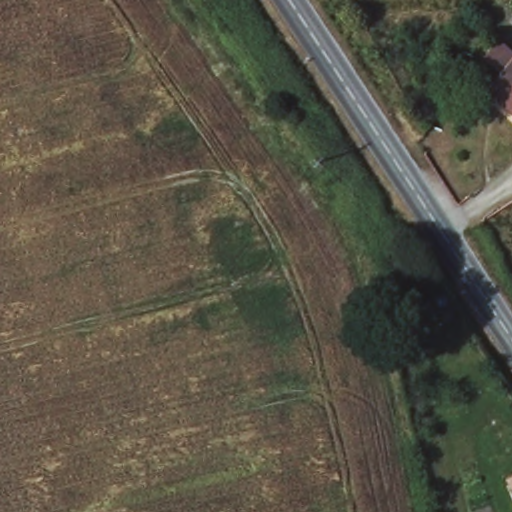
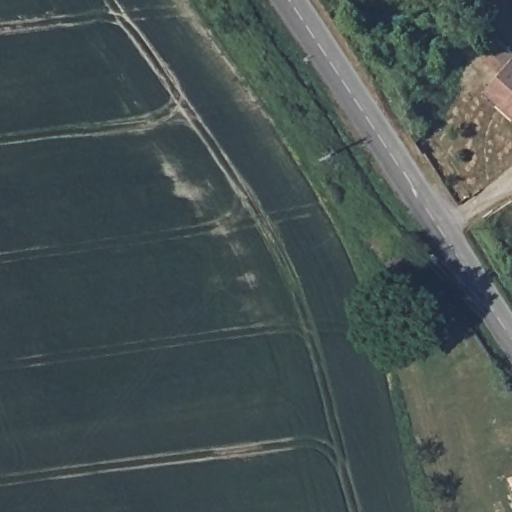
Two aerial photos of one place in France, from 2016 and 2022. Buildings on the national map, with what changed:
unchanged [(512,109),(490,90),(505,72),(488,56),(499,44),(512,54),(512,109)]

